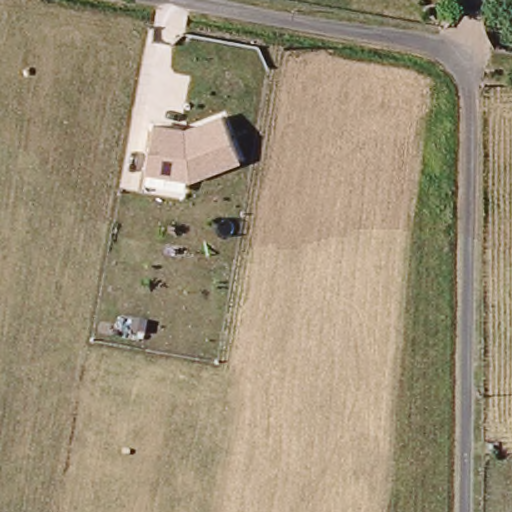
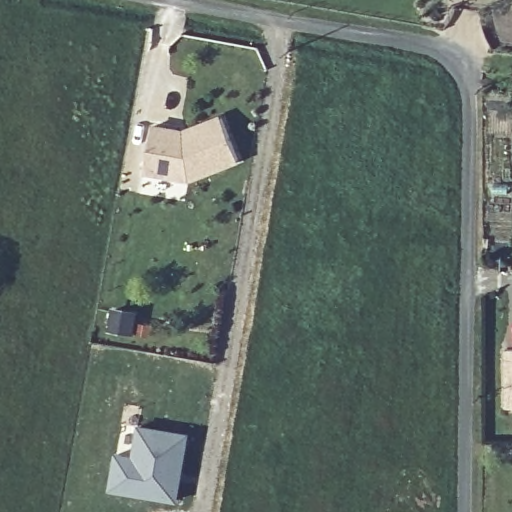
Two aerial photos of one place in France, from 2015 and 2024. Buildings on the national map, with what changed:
unchanged [(140,168),(147,125),(181,130),(217,116),(234,158),(186,176),(140,168)]
new [(137,322),(153,325),(151,337),(109,330),(113,306),(139,310),(137,322)]
new [(506,349),(512,349),(512,407),(506,407),(506,349)]
new [(113,452),(130,453),(135,424),(190,432),(178,504),(107,493),(113,452)]

